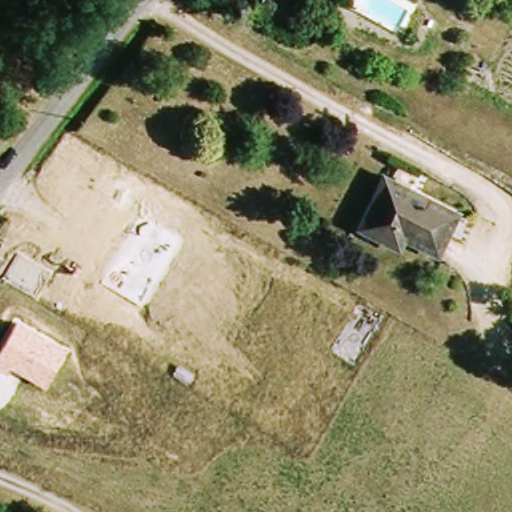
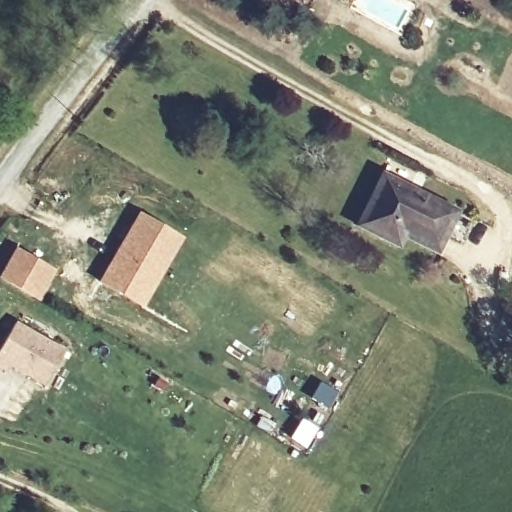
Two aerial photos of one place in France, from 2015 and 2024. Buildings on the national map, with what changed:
unchanged [(441,255),(408,237),(402,248),(361,227),(387,175),(462,213),(441,255)]
new [(183,239),(141,310),(97,285),(138,213),(183,239)]
new [(14,250),(24,250),(57,270),(38,301),(0,279),(0,274),(14,250)]
unchanged [(16,318),(67,347),(44,387),(11,367),(7,374),(0,369),(0,346),(16,318)]

